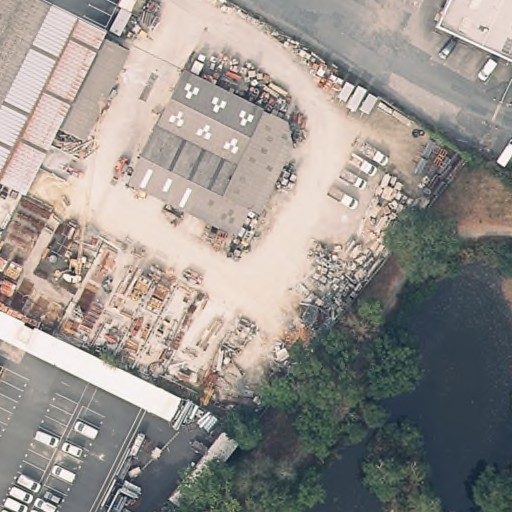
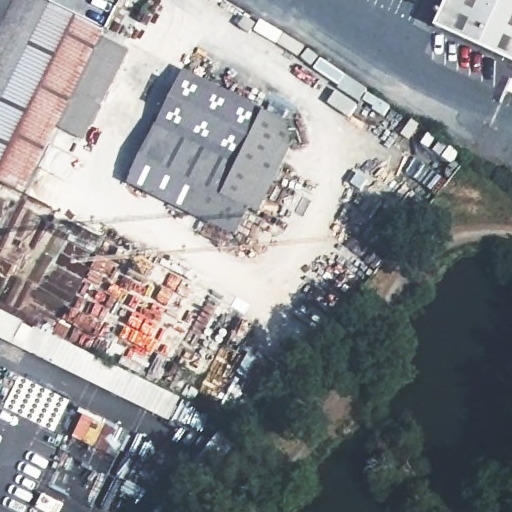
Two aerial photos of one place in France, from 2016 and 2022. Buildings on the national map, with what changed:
unchanged [(41,0),(106,31),(103,36),(61,124),(31,185),(0,171),(0,0),(41,0)]
unchanged [(444,0),(512,0),(512,81),(425,41),(444,0)]
unchanged [(131,50),(89,137),(61,124),(103,36),(131,50)]
unchanged [(184,70),(288,120),(293,141),(261,210),(250,205),(237,232),(130,180),(184,70)]
unchanged [(31,185),(0,250),(0,171),(31,185)]

